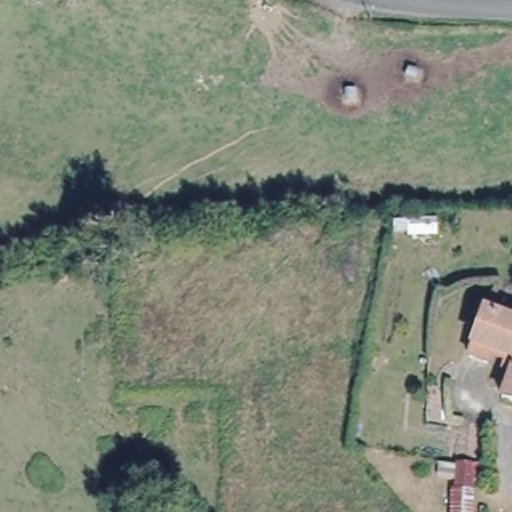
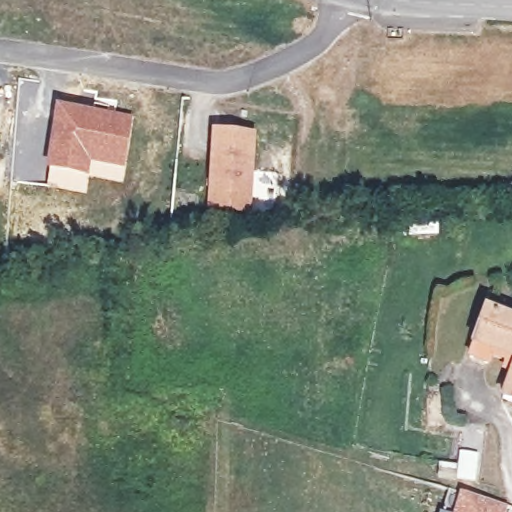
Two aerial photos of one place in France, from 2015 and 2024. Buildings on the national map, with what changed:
new [(55,104),(94,110),(96,97),(117,100),(115,114),(133,118),(125,169),(92,164),(89,177),(45,169),(55,104)]
new [(257,131),(254,214),(207,211),(212,127),(257,131)]
unchanged [(491,343),(486,356),(470,351),(486,307),(512,317),(512,351),(491,343)]
unchanged [(512,368),(512,399),(502,395),(512,368)]
unchanged [(478,432),(474,463),(461,461),(465,430),(478,432)]
new [(507,508),(507,512),(455,512),(461,493),(507,508)]

